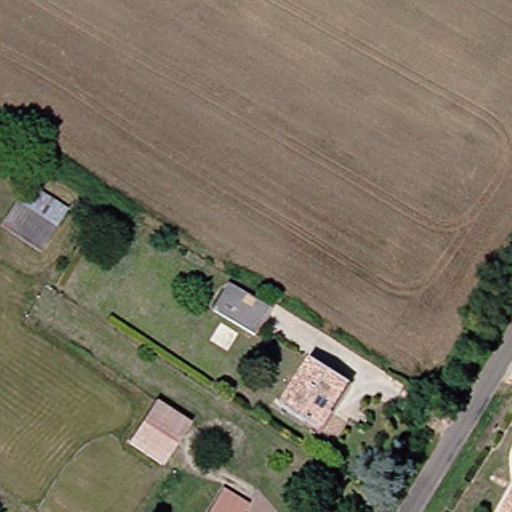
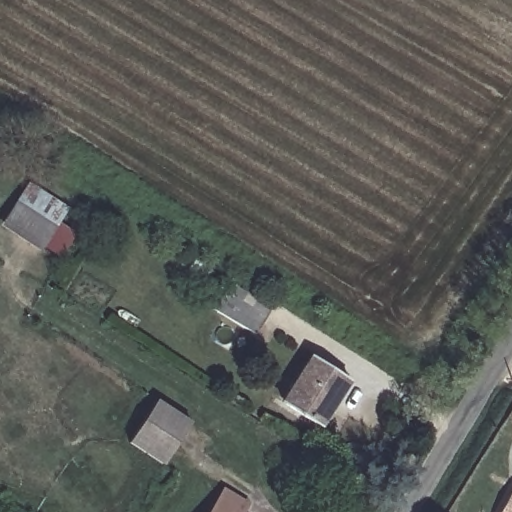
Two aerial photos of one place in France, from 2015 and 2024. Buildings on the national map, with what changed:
unchanged [(0,217),(22,185),(57,210),(31,247),(0,226),(0,217)]
unchanged [(248,331),(208,308),(220,283),(261,307),(248,331)]
unchanged [(334,381),(312,418),(283,402),(301,363),(334,381)]
unchanged [(198,435),(173,477),(138,457),(163,415),(198,435)]
unchanged [(510,484),(512,485),(512,512),(494,512),(510,484)]
unchanged [(236,501),(255,512),(229,512),(236,501)]

